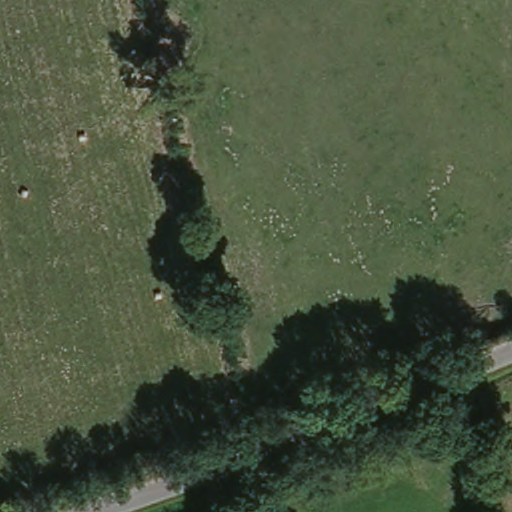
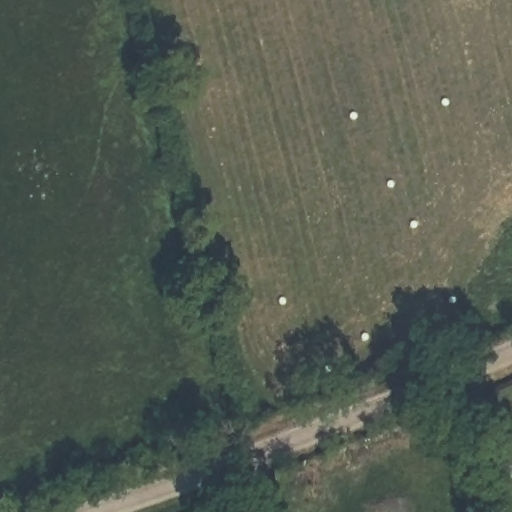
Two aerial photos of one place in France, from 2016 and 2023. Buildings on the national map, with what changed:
unchanged [(509,442),(512,442),(512,481),(509,442)]

